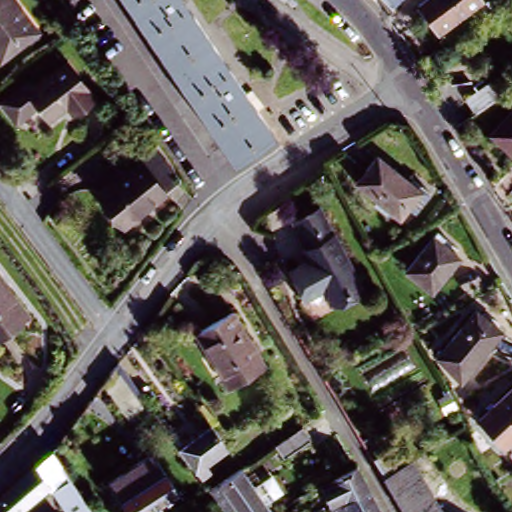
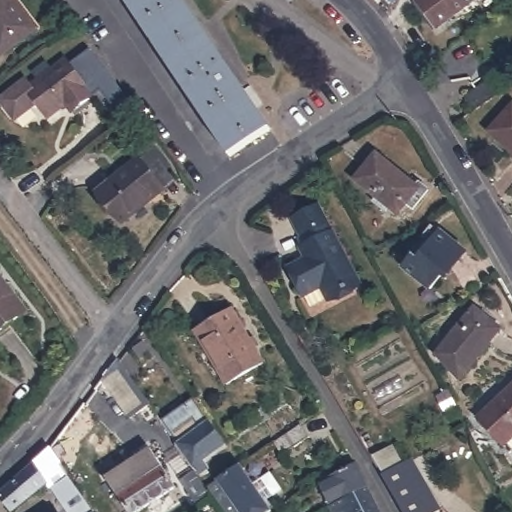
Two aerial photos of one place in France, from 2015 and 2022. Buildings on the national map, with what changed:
unchanged [(0,57),(0,0),(10,0),(35,31),(0,57)]
unchanged [(124,0),(183,0),(211,43),(174,78),(124,0)]
unchanged [(432,35),(412,8),(423,0),(471,0),(475,4),(432,35)]
unchanged [(211,43),(270,134),(227,162),(174,78),(211,43)]
unchanged [(64,108),(45,120),(32,104),(26,109),(15,116),(14,117),(12,117),(10,116),(8,114),(0,103),(0,97),(22,81),(27,88),(65,62),(92,99),(75,110),(70,115),(64,108)]
unchanged [(468,89),(493,72),(504,87),(483,102),(478,105),(468,89)]
unchanged [(512,105),(512,152),(489,129),(512,105)]
unchanged [(93,202),(131,169),(147,156),(164,176),(159,181),(167,190),(156,198),(155,199),(118,232),(93,202)]
unchanged [(402,181),(405,177),(422,190),(409,208),(406,213),(400,208),(393,216),(350,185),(370,157),(390,173),(402,181)]
unchanged [(352,283),(320,299),(314,288),(298,296),(285,269),(301,260),(296,248),(302,245),(288,219),(315,206),(352,283)]
unchanged [(400,274),(428,239),(428,238),(432,234),(446,246),(442,250),(457,263),(447,275),(429,298),(400,274)]
unchanged [(0,332),(0,292),(19,317),(0,332)]
unchanged [(435,362),(447,346),(470,317),(475,311),(502,333),(488,351),(475,368),(460,387),(435,362)]
unchanged [(261,364),(227,386),(194,334),(229,312),(261,364)]
unchanged [(138,360),(150,377),(148,378),(155,389),(147,395),(150,400),(129,413),(104,376),(120,355),(128,366),(138,360)]
unchanged [(452,406),(443,411),(435,398),(444,393),(452,406)]
unchanged [(512,445),(506,450),(480,423),(512,395),(512,445)]
unchanged [(309,431),(282,449),(275,438),(302,419),(309,431)]
unchanged [(197,482),(195,478),(192,472),(175,448),(207,427),(223,451),(204,464),(210,473),(197,482)]
unchanged [(138,512),(124,512),(103,482),(150,453),(173,488),(138,512)]
unchanged [(433,512),(395,512),(377,478),(405,462),(433,512)]
unchanged [(16,512),(6,512),(0,506),(0,493),(32,464),(45,488),(16,512)]
unchanged [(325,511),(314,488),(351,469),(353,468),(365,490),(325,511)]
unchanged [(259,512),(213,512),(205,501),(201,493),(232,471),(259,512)]
unchanged [(326,512),(325,511),(365,490),(375,511),(374,512),(326,512)]
unchanged [(374,512),(375,511),(376,512),(374,512)]

